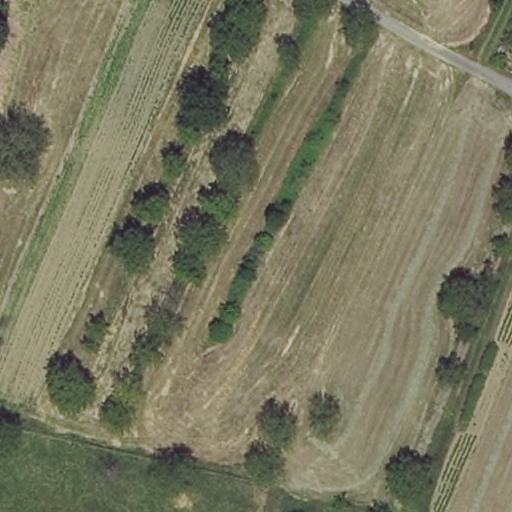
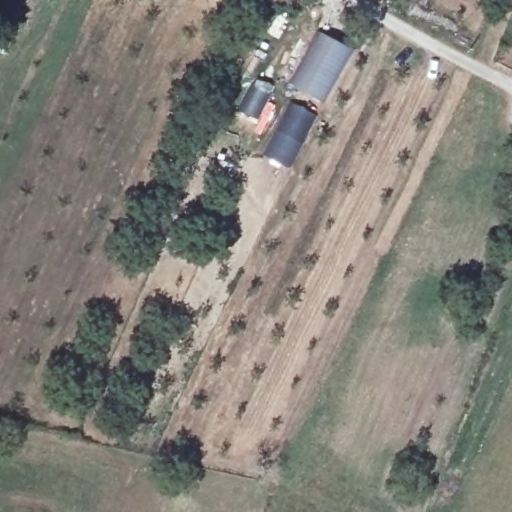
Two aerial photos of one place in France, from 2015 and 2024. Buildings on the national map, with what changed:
new [(321,34),(353,51),(324,104),(293,86),(321,34)]
new [(315,116),(288,169),(261,155),(289,102),(315,116)]

